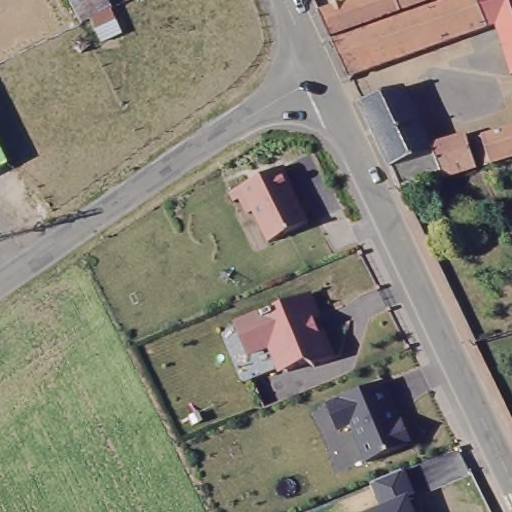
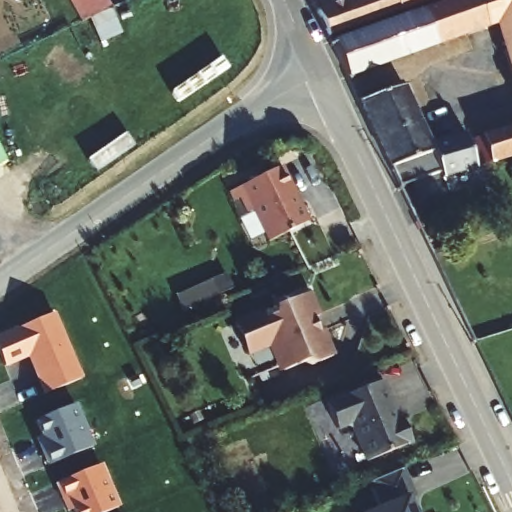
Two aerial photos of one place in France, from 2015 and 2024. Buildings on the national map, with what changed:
unchanged [(69,0),(105,0),(110,10),(121,31),(93,46),(81,24),(69,0)]
unchanged [(328,31),(316,6),(336,0),(419,0),(328,31)]
unchanged [(433,3),(442,0),(512,0),(512,71),(497,23),(348,72),(331,36),(433,3)]
unchanged [(403,81),(430,139),(468,129),(480,164),(445,175),(442,168),(400,184),(358,96),(403,81)]
unchanged [(477,136),(512,125),(512,154),(485,162),(477,136)]
unchanged [(3,163),(0,165),(0,157),(3,163)]
unchanged [(297,193),(295,194),(300,205),(301,204),(311,225),(272,244),(257,213),(251,216),(239,191),(285,168),(297,193)]
unchanged [(268,350),(246,357),(235,321),(311,294),(333,354),(276,372),(268,350)]
new [(0,352),(0,325),(55,302),(77,367),(41,382),(26,347),(2,358),(0,352)]
unchanged [(384,379),(410,443),(364,461),(350,425),(336,430),(325,401),(384,379)]
new [(92,436),(45,456),(38,442),(43,439),(33,411),(76,396),(92,436)]
new [(81,512),(75,512),(65,488),(60,490),(54,473),(98,454),(116,499),(81,512)]
unchanged [(416,512),(371,512),(380,508),(370,482),(404,469),(415,495),(410,496),(416,512)]

